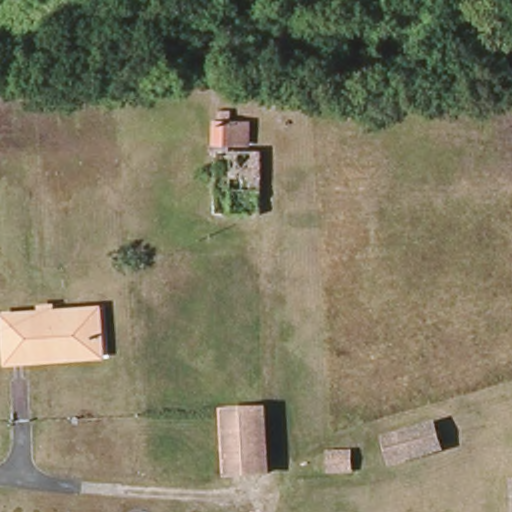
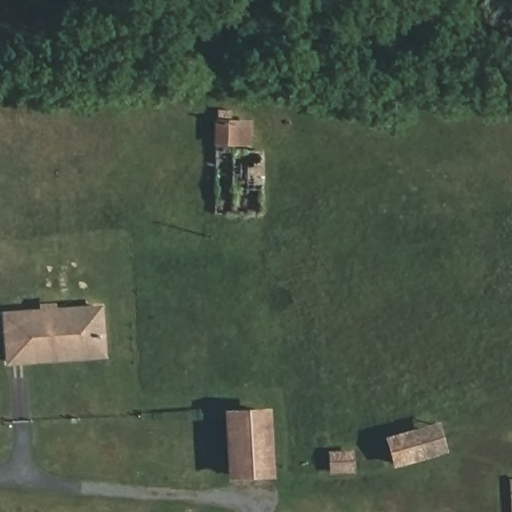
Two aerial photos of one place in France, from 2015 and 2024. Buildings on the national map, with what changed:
unchanged [(235,110),(235,126),(249,127),(249,147),(219,147),(218,110),(235,110)]
unchanged [(256,169),(255,220),(229,220),(228,171),(256,169)]
unchanged [(8,361),(0,321),(0,318),(92,310),(97,352),(8,361)]
unchanged [(226,418),(265,417),(265,474),(231,480),(226,418)]
unchanged [(438,459),(387,466),(383,440),(435,425),(438,459)]
unchanged [(347,472),(314,473),(313,453),(345,451),(347,472)]

